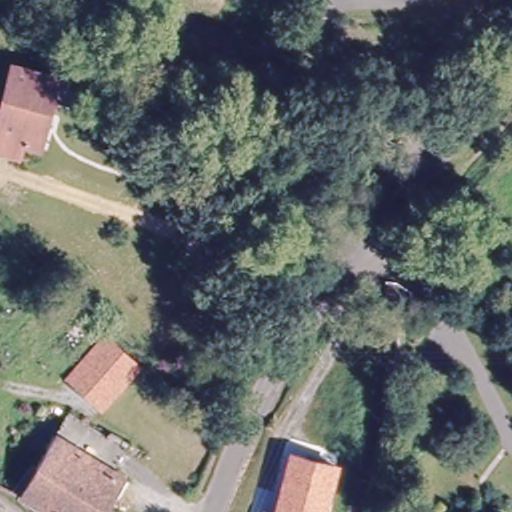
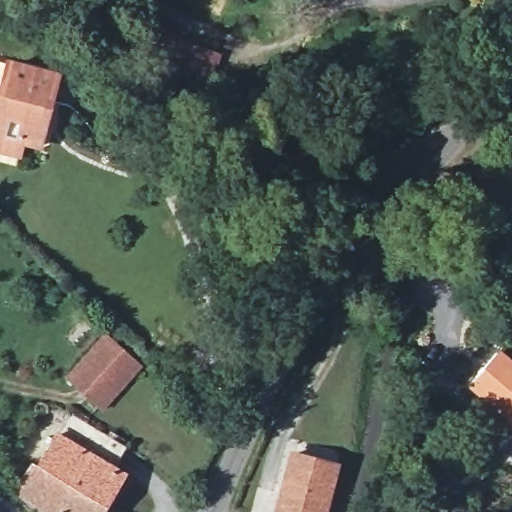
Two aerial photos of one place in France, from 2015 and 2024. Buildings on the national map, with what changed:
unchanged [(218,54),(211,77),(150,59),(157,35),(218,54)]
unchanged [(0,149),(0,101),(10,60),(57,72),(39,141),(20,136),(16,153),(0,149)]
unchanged [(102,404),(70,375),(106,336),(137,364),(102,404)]
new [(512,362),(512,426),(467,387),(500,351),(512,362)]
unchanged [(112,468),(55,434),(69,411),(126,444),(112,468)]
unchanged [(55,434),(112,468),(120,472),(101,502),(37,464),(55,434)]
unchanged [(338,465),(326,512),(273,512),(287,452),(338,465)]
unchanged [(57,512),(22,491),(37,464),(101,502),(96,512),(57,512)]

